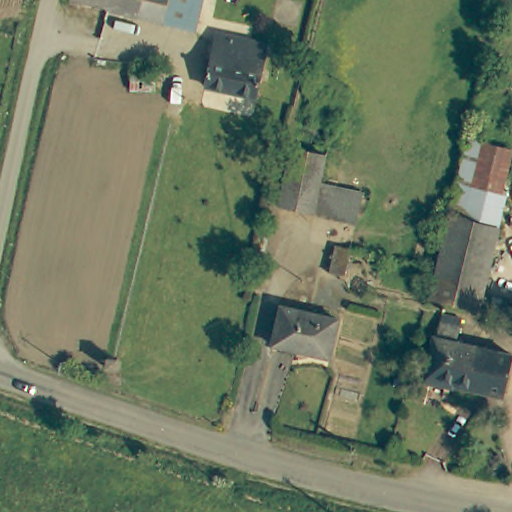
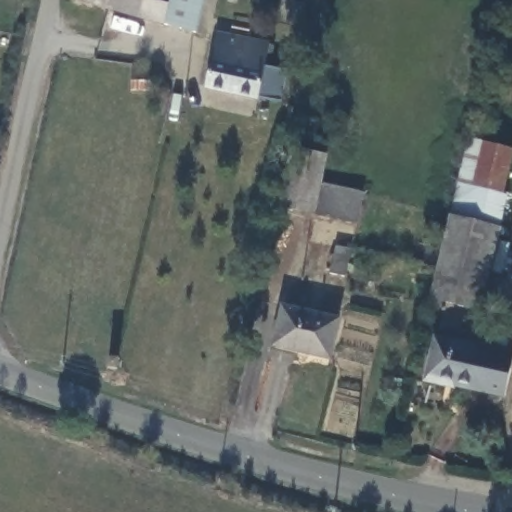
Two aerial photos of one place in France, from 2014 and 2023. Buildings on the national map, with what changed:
unchanged [(104,10),(70,0),(107,0),(104,10)]
unchanged [(107,0),(199,0),(188,33),(152,20),(151,23),(104,10),(107,0)]
unchanged [(209,50),(212,50),(215,34),(264,45),(256,87),(204,76),(209,50)]
unchanged [(151,72),(151,90),(129,90),(129,72),(151,72)]
unchanged [(467,140),(510,150),(492,226),(449,216),(467,140)]
unchanged [(288,149),(324,155),(319,186),(313,216),(278,209),(288,149)]
unchanged [(319,186),(359,195),(354,225),(313,216),(319,186)]
unchanged [(449,216),(492,226),(498,228),(478,310),(429,297),(449,216)]
unchanged [(332,247),(349,250),(344,277),(327,273),(332,247)]
unchanged [(279,307),(335,320),(327,358),(271,346),(279,307)]
unchanged [(497,397),(418,380),(428,337),(430,338),(436,315),(455,319),(449,343),(507,356),(497,397)]

